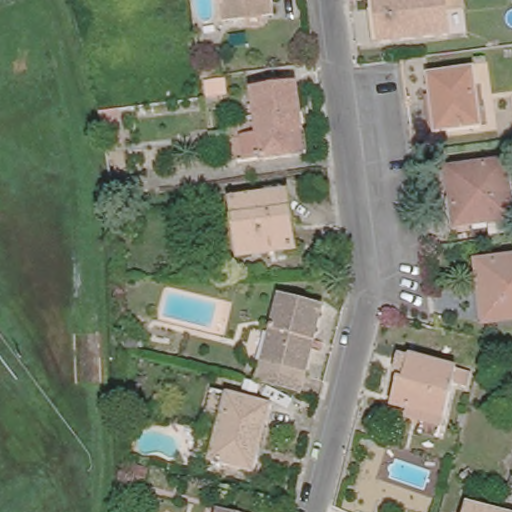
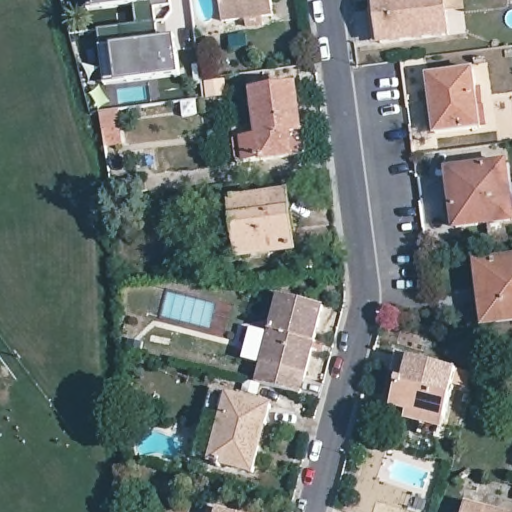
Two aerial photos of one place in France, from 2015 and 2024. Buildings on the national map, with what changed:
new [(154,7),(156,24),(136,26),(134,6),(103,10),(88,11),(87,0),(170,0),(171,5),(154,7)]
unchanged [(244,15),(222,17),(220,0),(271,0),(273,11),(261,12),(263,22),(245,24),(244,15)]
unchanged [(379,0),(449,0),(454,36),(385,44),(379,0)]
new [(102,70),(98,32),(97,31),(136,26),(156,24),(158,41),(175,39),(176,51),(179,78),(127,84),(104,86),(102,70)]
unchanged [(439,129),(432,70),(477,64),(486,123),(439,129)]
unchanged [(253,139),(246,92),(291,86),(296,134),(299,156),(289,156),(256,161),(253,139)]
unchanged [(437,172),(435,152),(449,151),(451,170),(437,172)]
unchanged [(510,162),(512,177),(512,221),(459,228),(451,170),(510,162)]
unchanged [(110,197),(108,182),(143,177),(145,192),(110,197)]
unchanged [(238,253),(231,196),(286,188),(294,247),(238,253)]
unchanged [(476,263),(512,258),(512,321),(484,324),(476,263)]
unchanged [(259,377),(284,290),(328,303),(305,389),(259,377)]
unchanged [(390,406),(398,378),(392,376),(398,354),(408,356),(456,369),(469,373),(465,388),(452,385),(442,420),(440,429),(405,420),(408,411),(390,406)]
unchanged [(267,474),(222,461),(208,457),(227,391),(241,395),(285,407),(267,474)]
unchanged [(511,512),(464,512),(467,501),(511,512)]
unchanged [(221,507),(242,512),(219,512),(221,507)]

